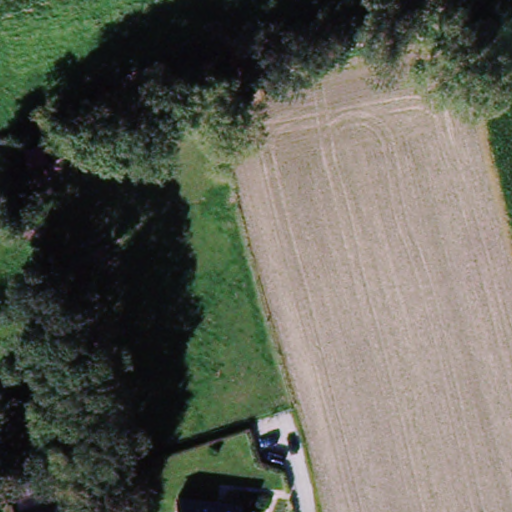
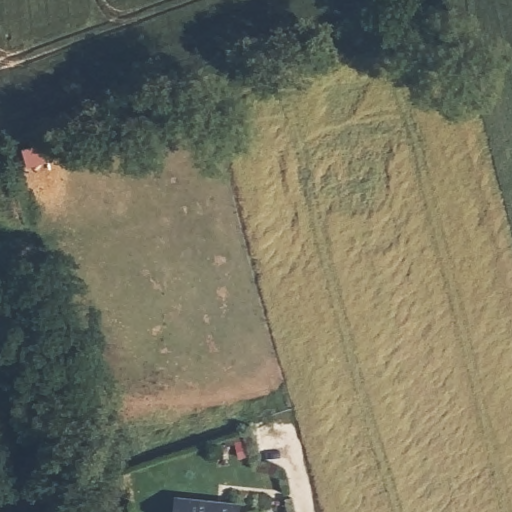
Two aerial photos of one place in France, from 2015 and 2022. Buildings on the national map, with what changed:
unchanged [(31,505),(28,496),(69,484),(71,494),(77,512),(33,512),(31,505)]
unchanged [(242,507),(241,512),(179,512),(181,498),(242,507)]

